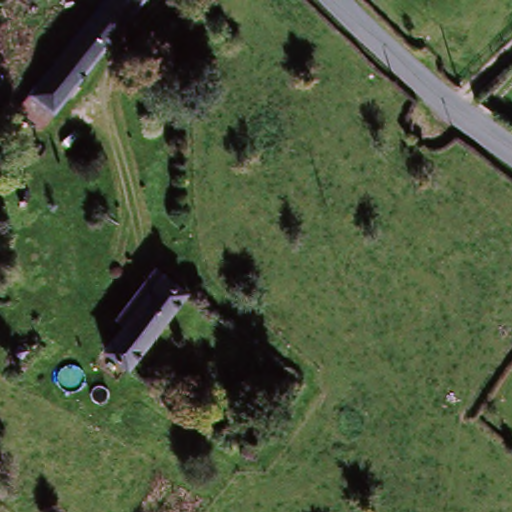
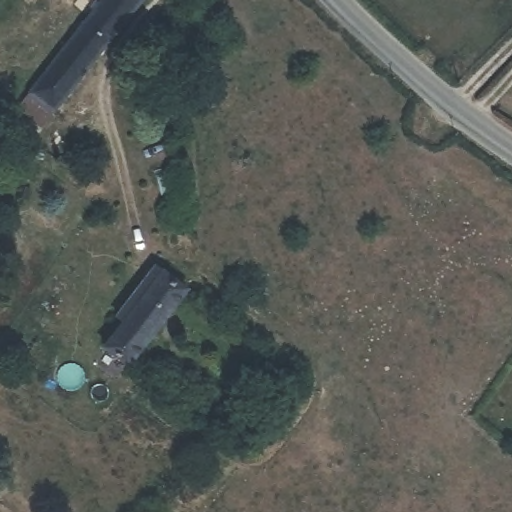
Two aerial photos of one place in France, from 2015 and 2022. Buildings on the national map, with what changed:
unchanged [(38,81),(51,65),(59,54),(95,9),(102,0),(138,0),(118,26),(81,71),(60,99),(47,115),(25,97),(38,81)]
unchanged [(127,370),(99,350),(123,320),(116,315),(154,265),(190,290),(127,370)]

